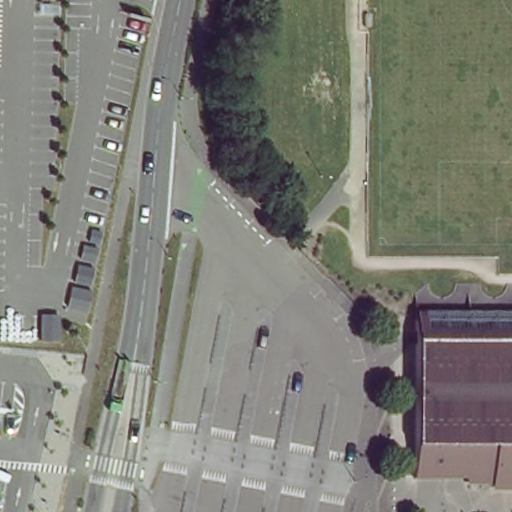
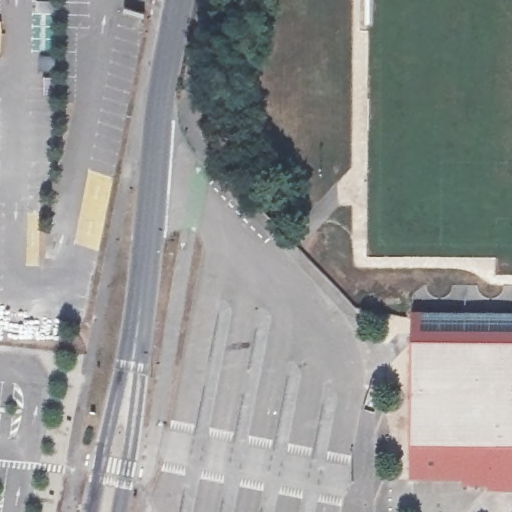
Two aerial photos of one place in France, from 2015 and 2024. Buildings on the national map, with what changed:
unchanged [(490,485),(490,480),(462,480),(462,473),(414,473),(415,320),(512,320),(512,486),(490,485)]

